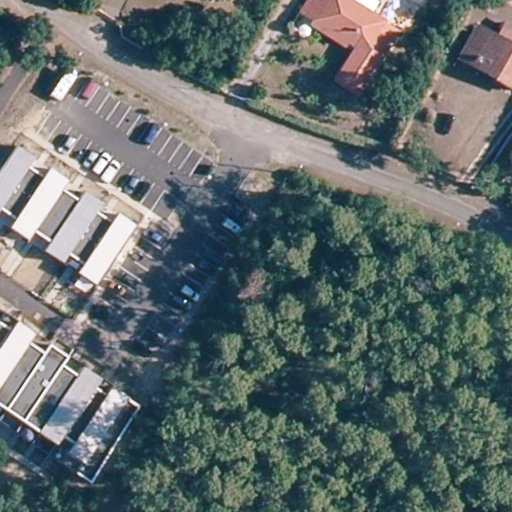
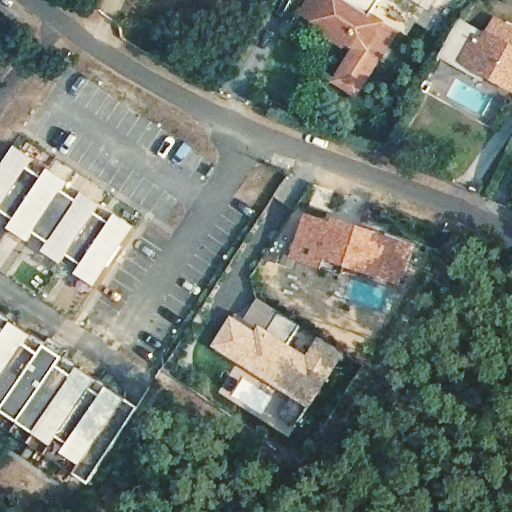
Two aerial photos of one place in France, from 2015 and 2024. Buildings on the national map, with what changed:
unchanged [(341,35),(337,40),(306,20),(311,15),(296,5),(299,0),(350,0),(373,0),(367,11),(371,14),(389,26),(370,55),(350,86),(332,74),(353,42),(341,35)]
unchanged [(447,0),(441,10),(429,3),(430,0),(447,0)]
unchanged [(469,72),(455,65),(473,32),(486,39),(494,43),(502,30),(512,35),(512,95),(499,89),(486,81),(469,72)]
unchanged [(29,167),(44,177),(49,170),(67,181),(63,190),(80,200),(85,192),(101,205),(96,212),(113,222),(116,215),(134,227),(95,285),(77,274),(84,264),(69,255),(64,264),(46,252),(50,243),(34,232),(28,240),(10,229),(15,220),(1,210),(0,211),(0,172),(16,146),(35,159),(29,167)]
new [(407,240),(397,271),(324,247),(317,268),(290,260),(305,212),(332,221),(333,216),(407,240)]
new [(332,273),(317,268),(324,247),(338,252),(332,273)]
new [(213,341),(229,316),(233,310),(258,325),(263,328),(276,307),(297,320),(284,342),(305,355),(319,333),(340,347),(307,400),(286,386),(239,357),(213,341)]
unchanged [(26,342),(41,352),(53,337),(73,350),(68,358),(139,408),(90,484),(0,423),(0,313),(32,334),(26,342)]

